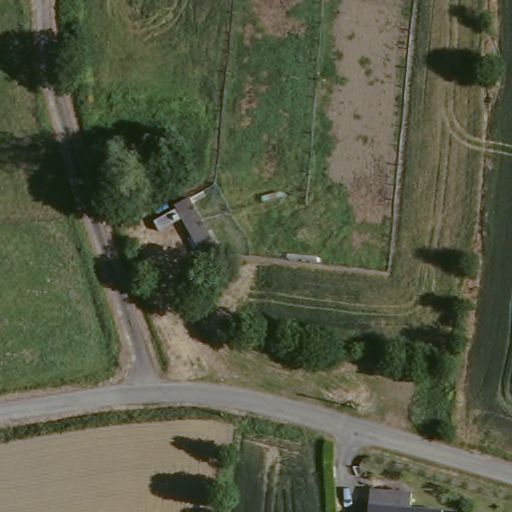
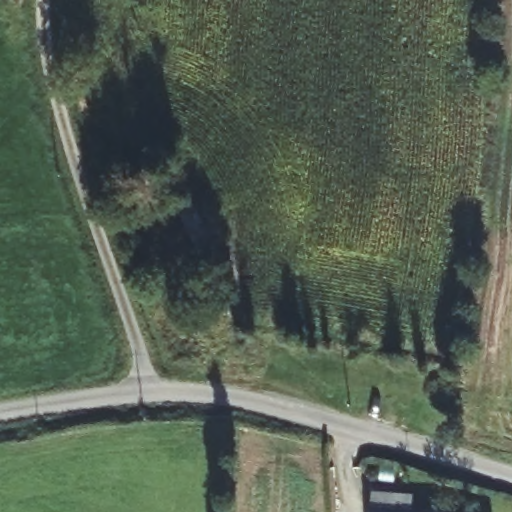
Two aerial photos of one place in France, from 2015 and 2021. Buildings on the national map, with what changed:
unchanged [(202,255),(175,208),(187,200),(215,248),(202,255)]
unchanged [(412,507),(446,510),(446,512),(374,512),(376,486),(414,488),(412,507)]
unchanged [(446,512),(446,510),(458,512),(446,512)]

